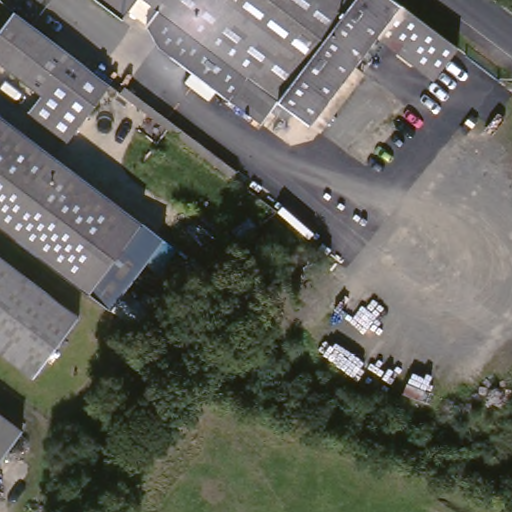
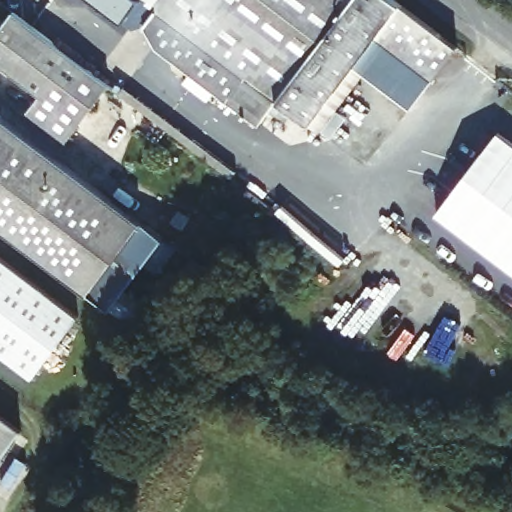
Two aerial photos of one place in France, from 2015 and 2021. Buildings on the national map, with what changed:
unchanged [(422,20),(457,47),(411,106),(365,73),(323,133),(290,108),(272,131),(167,50),(157,30),(169,15),(152,2),(132,26),(100,0),(397,0),(414,13),(422,20)]
unchanged [(46,98),(0,62),(0,37),(20,12),(117,87),(73,143),(35,113),(46,98)]
unchanged [(36,140),(127,208),(149,225),(162,235),(141,262),(129,252),(95,297),(0,225),(0,112),(36,140)]
new [(512,145),(512,273),(436,217),(498,135),(512,145)]
unchanged [(38,379),(0,350),(0,255),(85,319),(38,379)]
unchanged [(171,321),(156,340),(122,313),(137,293),(171,321)]
unchanged [(21,428),(0,457),(0,413),(21,428)]

